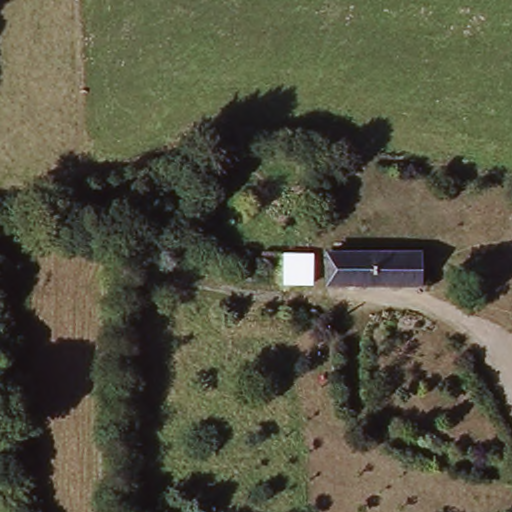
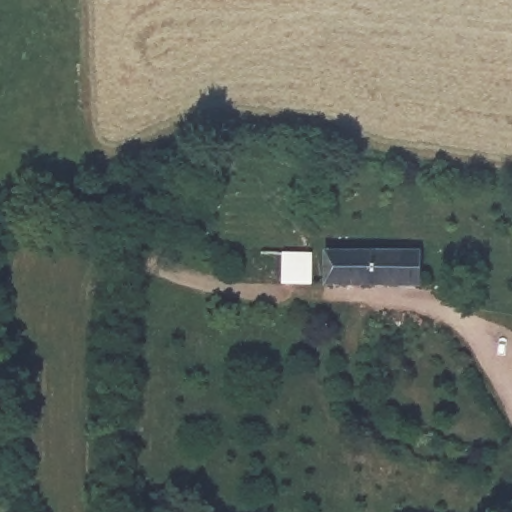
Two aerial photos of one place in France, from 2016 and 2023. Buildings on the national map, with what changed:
unchanged [(421,252),(421,259),(421,287),(326,287),(327,252),(421,252)]
unchanged [(310,257),(308,285),(280,285),(281,257),(310,257)]

